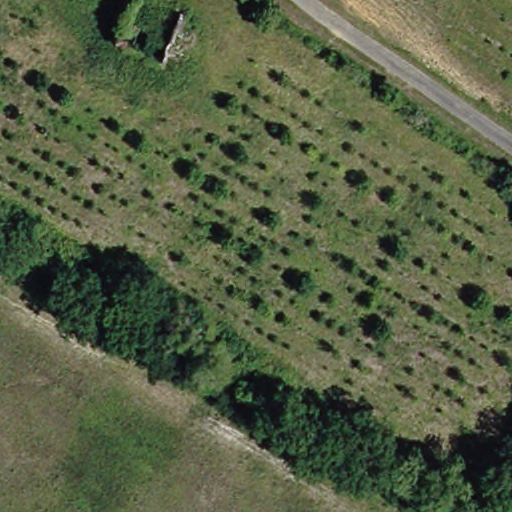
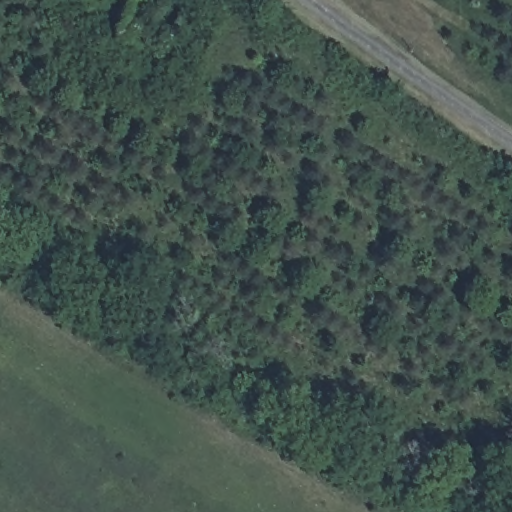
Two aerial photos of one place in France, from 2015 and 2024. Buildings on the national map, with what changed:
unchanged [(175,57),(122,40),(135,4),(187,22),(175,57)]

